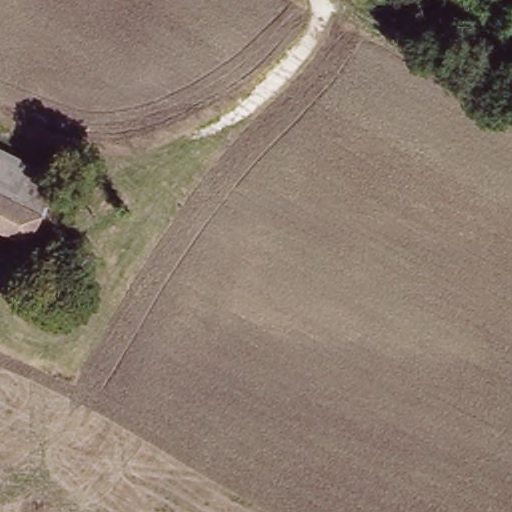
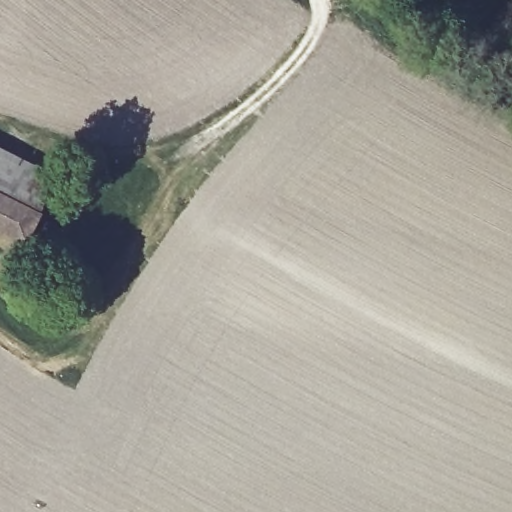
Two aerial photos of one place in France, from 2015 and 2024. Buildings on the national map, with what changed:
unchanged [(29,244),(0,230),(0,157),(58,184),(29,244)]

